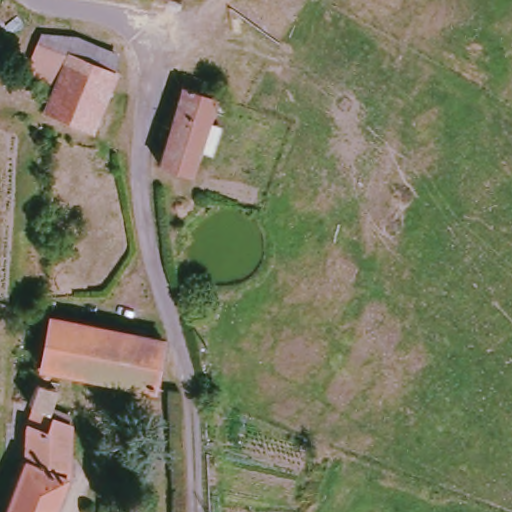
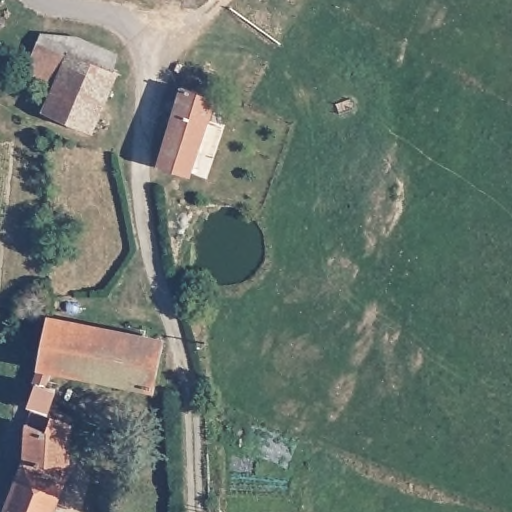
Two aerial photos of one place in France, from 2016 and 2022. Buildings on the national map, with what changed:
unchanged [(51,83),(21,71),(37,30),(76,35),(119,52),(111,73),(117,76),(93,134),(41,111),(51,83)]
unchanged [(195,97),(217,104),(190,181),(151,166),(181,78),(199,84),(195,97)]
unchanged [(55,315),(168,342),(157,389),(58,366),(54,386),(63,388),(57,415),(79,421),(73,473),(58,512),(6,512),(31,438),(43,363),(55,319),(55,315)]

